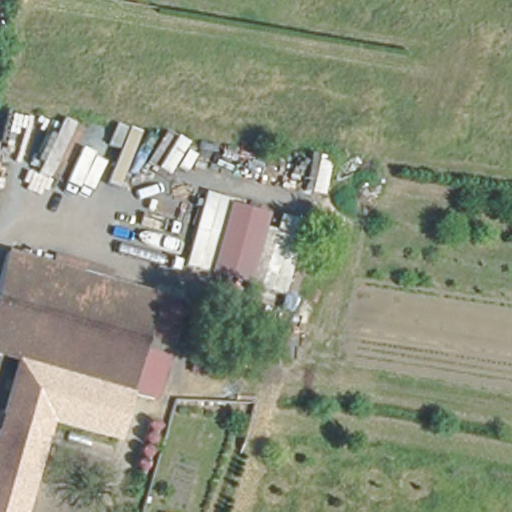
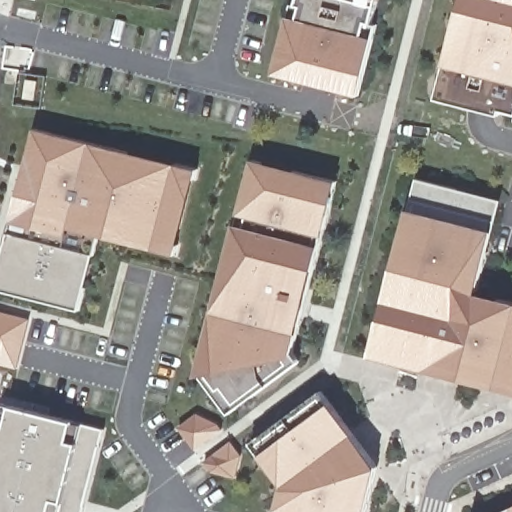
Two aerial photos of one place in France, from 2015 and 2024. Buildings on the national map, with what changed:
new [(377,25),(375,37),(365,74),(359,95),(274,73),(288,15),(291,4),(296,5),(297,0),(379,0),(373,24),(377,25)]
new [(502,116),(436,98),(445,64),(460,8),(462,0),(512,0),(512,113),(503,110),(502,116)]
new [(37,127),(197,165),(178,252),(98,232),(80,308),(0,288),(0,263),(37,127)]
new [(337,181),(297,355),(300,362),(229,412),(202,372),(252,159),(337,181)]
new [(371,356),(380,318),(385,301),(393,268),(408,208),(416,177),(502,199),(494,230),(478,294),(512,301),(512,392),(497,388),(462,379),(425,370),(371,356)]
demolished [(283,295),(246,285),(245,282),(208,272),(209,273),(183,267),(187,251),(162,245),(169,223),(192,229),(204,190),(232,197),(230,203),(267,212),(267,217),(277,219),(280,210),(304,219),(283,295)]
demolished [(45,263),(77,272),(151,293),(125,387),(17,360),(14,359),(0,356),(0,250),(45,263)]
new [(34,320),(22,366),(0,364),(0,311),(34,320)]
demolished [(121,400),(10,377),(14,359),(17,360),(125,387),(121,400)]
demolished [(105,462),(42,445),(27,512),(0,512),(0,416),(10,377),(121,400),(105,462)]
new [(323,391),(383,466),(371,512),(277,512),(286,482),(254,441),(323,391)]
new [(78,512),(0,512),(0,414),(4,401),(97,427),(78,512)]
new [(204,415),(230,430),(201,450),(183,426),(204,415)]
new [(235,438),(248,452),(242,478),(217,475),(209,459),(235,438)]
new [(512,506),(512,512),(499,512),(512,506)]

